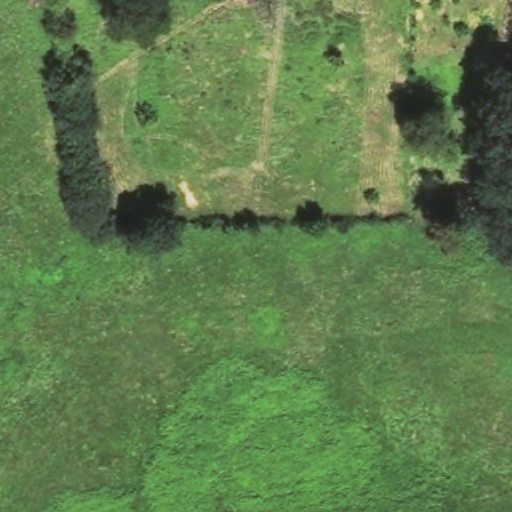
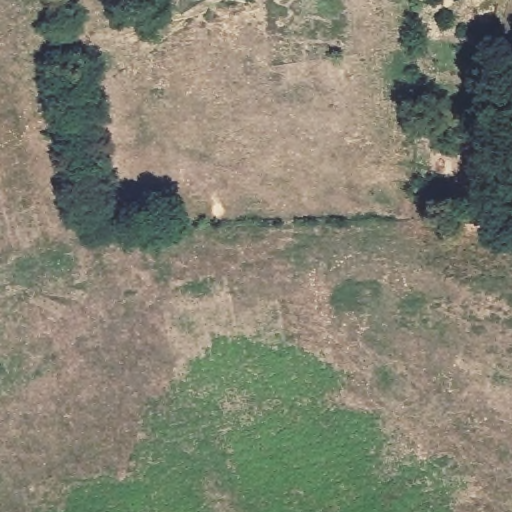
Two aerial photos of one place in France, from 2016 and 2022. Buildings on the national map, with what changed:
[]

